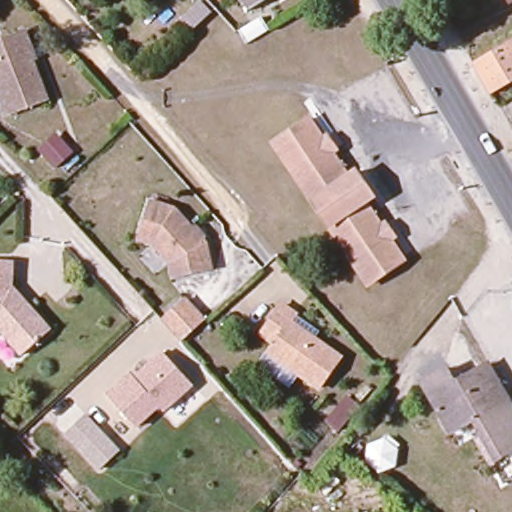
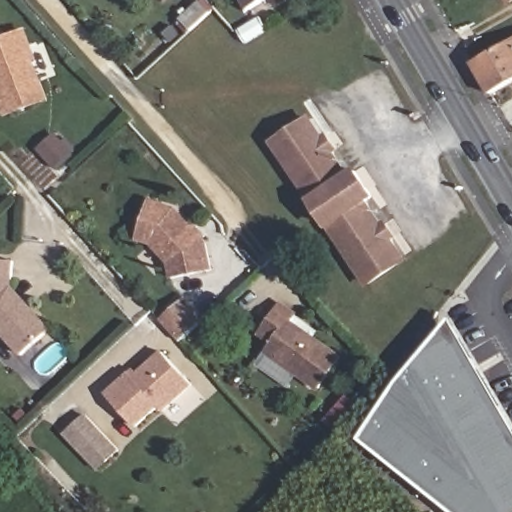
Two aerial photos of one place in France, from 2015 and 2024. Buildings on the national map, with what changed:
unchanged [(235,0),(264,0),(244,13),(235,0)]
unchanged [(500,0),(505,0),(502,2),(500,0)]
unchanged [(5,113),(0,98),(0,37),(18,31),(44,99),(5,113)]
unchanged [(474,63),(512,41),(512,83),(493,94),(474,63)]
unchanged [(319,141),(323,140),(333,152),(328,155),(344,179),(348,175),(364,200),(359,203),(375,225),(381,223),(389,237),(386,241),(400,261),(362,285),(269,147),(308,122),(319,141)]
unchanged [(214,267),(175,276),(173,260),(155,240),(139,234),(153,197),(179,207),(195,226),(199,223),(209,233),(204,236),(209,241),(214,267)]
unchanged [(0,334),(0,258),(9,258),(9,288),(25,306),(48,330),(21,356),(0,334)]
unchanged [(169,325),(193,302),(211,322),(187,345),(169,325)]
unchanged [(294,316),(289,322),(340,356),(319,388),(267,354),(273,345),(259,337),(279,306),(294,316)]
new [(481,315),(512,386),(512,407),(482,339),(474,336),(462,336),(447,344),(481,315)]
new [(462,336),(474,336),(482,339),(512,407),(512,512),(462,512),(363,434),(404,381),(447,345),(462,336)]
unchanged [(193,384),(164,410),(159,406),(137,427),(108,396),(130,374),(134,370),(139,375),(163,352),(193,384)]
demolished [(447,369),(456,384),(489,366),(512,405),(512,453),(498,461),(477,422),(452,434),(424,382),(447,369)]
unchanged [(99,469),(66,435),(85,416),(119,450),(99,469)]

